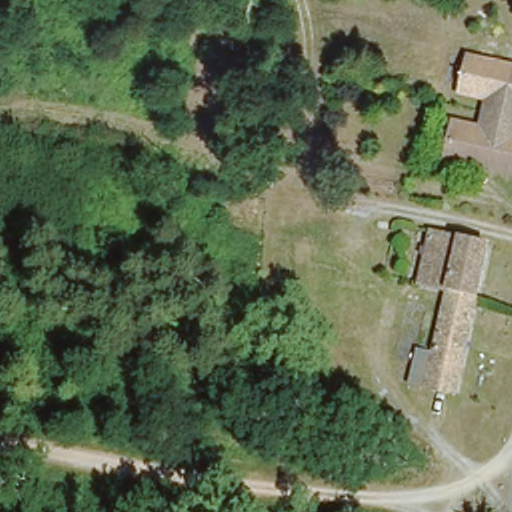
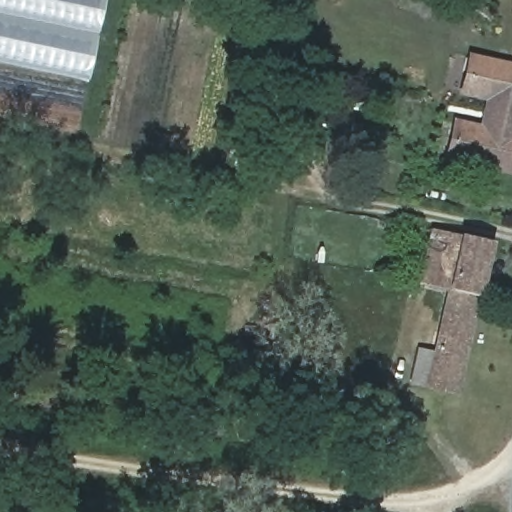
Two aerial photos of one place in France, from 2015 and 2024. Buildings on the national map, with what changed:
new [(0,62),(0,0),(105,0),(88,81),(0,62)]
unchanged [(452,121),(479,124),(485,101),(459,96),(467,53),(512,64),(512,176),(443,162),(452,121)]
unchanged [(449,393),(424,387),(456,242),(484,249),(463,342),(452,394),(449,393)]

